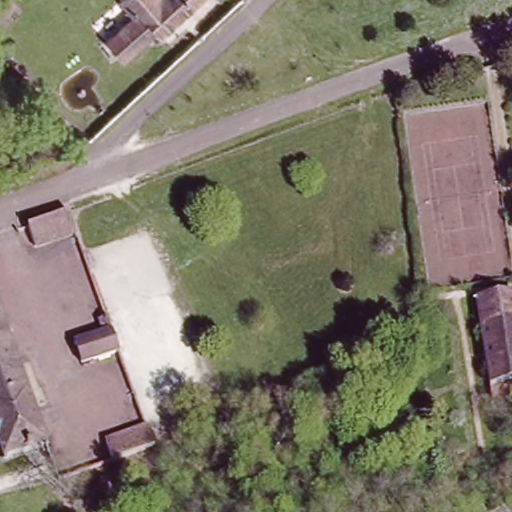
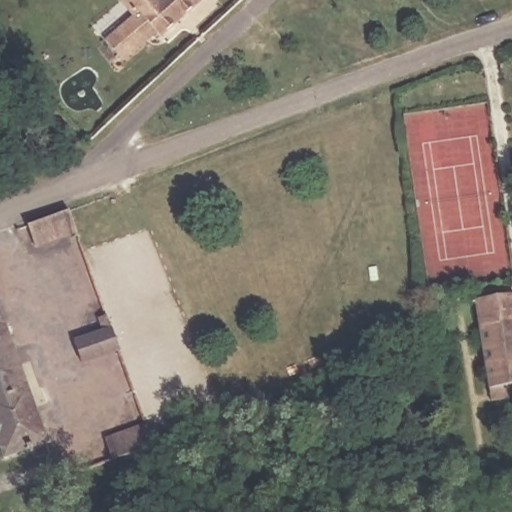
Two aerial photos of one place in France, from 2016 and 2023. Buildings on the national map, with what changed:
unchanged [(103,40),(133,17),(121,0),(122,0),(198,0),(120,62),(103,40)]
unchanged [(38,250),(27,223),(36,220),(56,213),(69,208),(78,235),(38,250)]
unchanged [(492,390),(480,299),(512,295),(512,388),(492,390)]
unchanged [(0,452),(0,306),(48,448),(3,462),(0,452)]
unchanged [(98,330),(95,322),(105,318),(109,326),(98,330)]
unchanged [(118,349),(82,363),(75,345),(110,331),(118,349)]
unchanged [(103,441),(145,426),(151,444),(112,460),(109,461),(103,441)]

